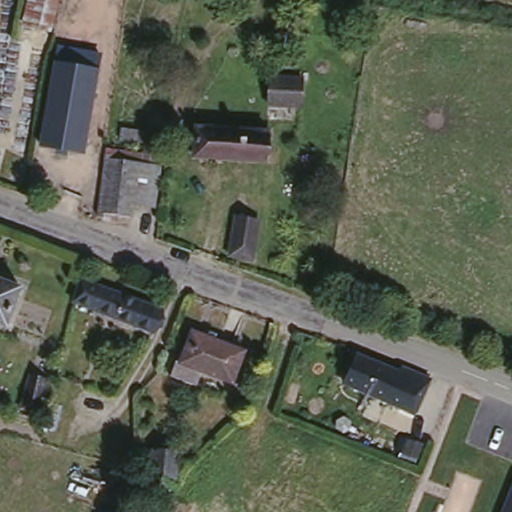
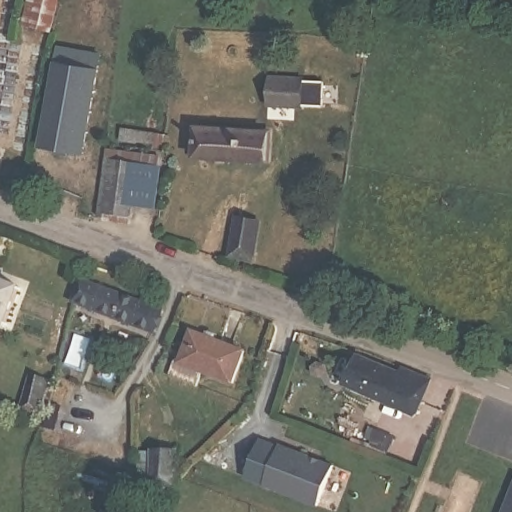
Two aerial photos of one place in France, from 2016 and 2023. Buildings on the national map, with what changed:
unchanged [(49,24),(23,19),(27,0),(54,0),(49,24)]
unchanged [(71,41),(70,50),(98,55),(81,153),(39,146),(57,45),(58,45),(60,39),(71,41)]
unchanged [(304,75),(303,105),(270,103),(271,74),(304,75)]
unchanged [(267,127),(265,157),(190,151),(193,122),(267,127)]
unchanged [(162,157),(162,209),(135,205),(133,219),(106,215),(108,145),(132,146),(138,155),(162,157)]
unchanged [(230,251),(231,246),(237,212),(260,216),(253,249),(252,255),(230,251)]
unchanged [(23,287),(9,325),(0,322),(0,278),(23,287)]
unchanged [(154,331),(77,302),(85,279),(163,310),(154,331)]
unchanged [(174,373),(180,357),(185,358),(197,327),(248,347),(236,378),(206,368),(200,382),(174,373)]
unchanged [(341,381),(352,351),(405,371),(409,366),(435,375),(425,403),(430,406),(428,412),(392,399),(341,381)]
unchanged [(52,373),(43,407),(27,402),(35,370),(52,373)]
new [(259,440),(333,466),(319,506),(246,480),(259,440)]
unchanged [(512,512),(502,512),(512,484),(512,512)]

